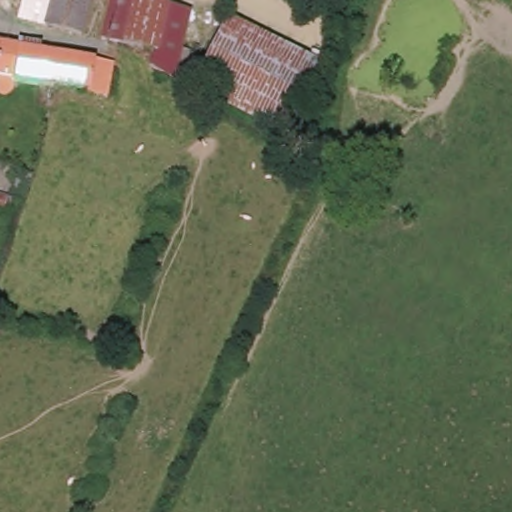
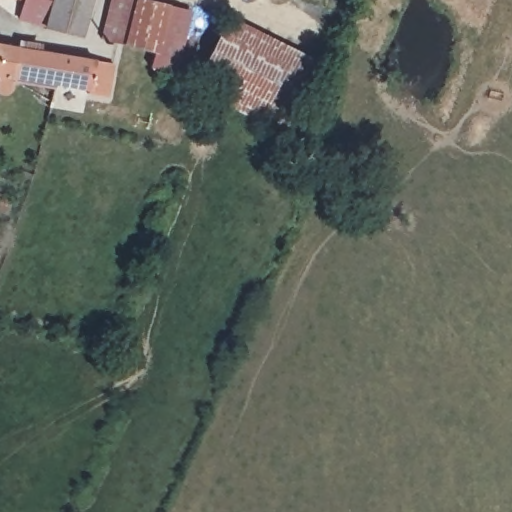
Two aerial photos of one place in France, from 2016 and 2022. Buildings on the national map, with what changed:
unchanged [(16,0),(91,0),(79,38),(61,33),(17,20),(22,2),(16,0)]
unchanged [(149,49),(95,33),(107,0),(140,0),(202,21),(196,40),(184,36),(178,51),(186,54),(175,79),(145,62),(149,49)]
unchanged [(230,17),(323,68),(286,136),(194,85),(230,17)]
unchanged [(10,85),(8,94),(7,98),(0,100),(0,45),(18,48),(10,85)]
unchanged [(10,85),(18,48),(60,55),(52,92),(10,85)]
unchanged [(110,103),(52,92),(60,55),(117,66),(110,103)]
unchanged [(0,215),(0,198),(24,208),(19,222),(0,215)]

